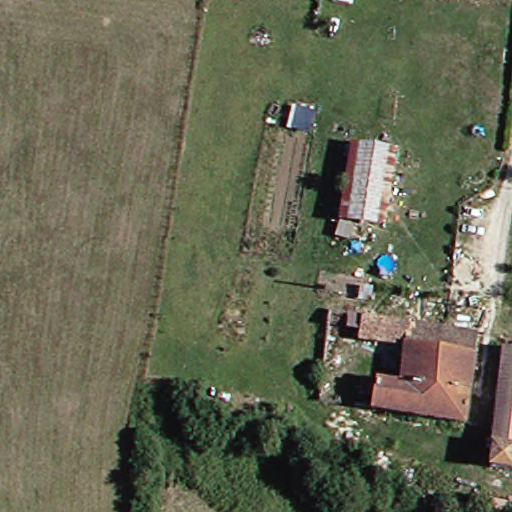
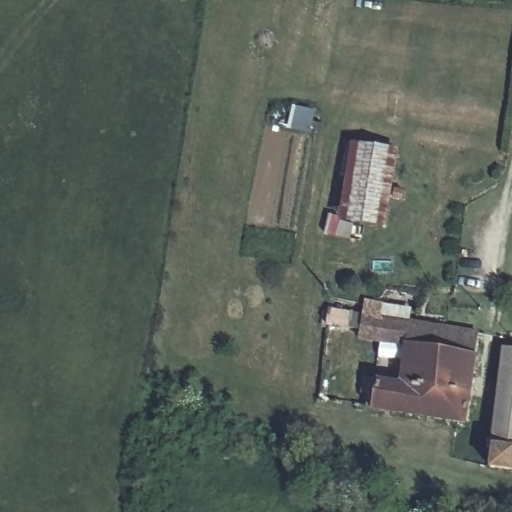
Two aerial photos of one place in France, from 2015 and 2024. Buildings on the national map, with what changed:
unchanged [(384,144),(373,234),(338,227),(347,137),(384,144)]
unchanged [(435,421),(359,414),(361,382),(397,385),(401,347),(356,341),(356,333),(313,326),(316,312),(443,330),(477,335),(473,358),(463,424),(435,421)]
unchanged [(506,471),(480,470),(483,446),(490,446),(498,353),(512,353),(512,442),(507,441),(506,471)]

